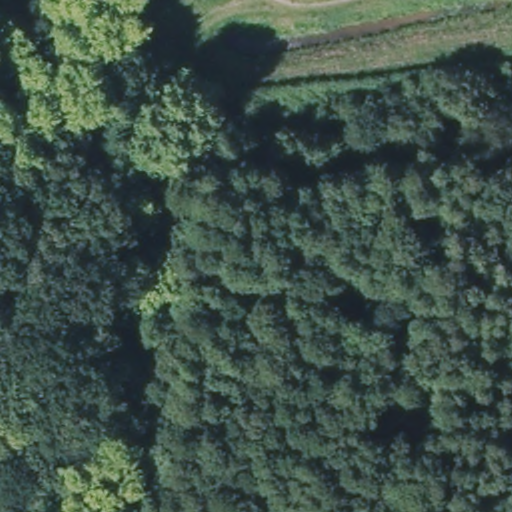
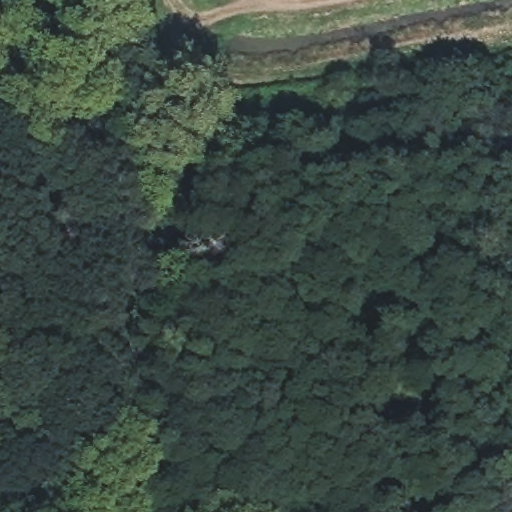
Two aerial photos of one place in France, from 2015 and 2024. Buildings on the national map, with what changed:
unchanged [(222,457),(232,458),(230,472),(220,471),(222,457)]

